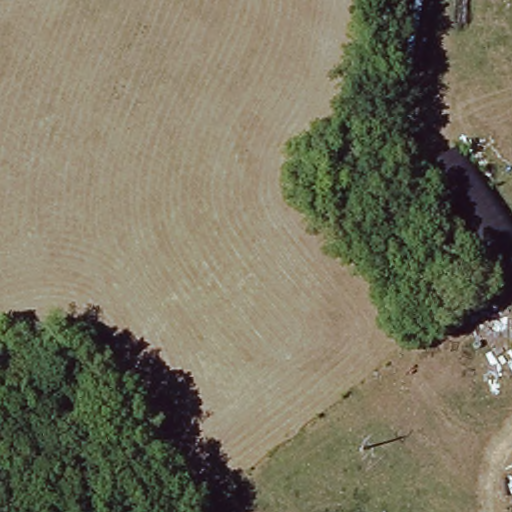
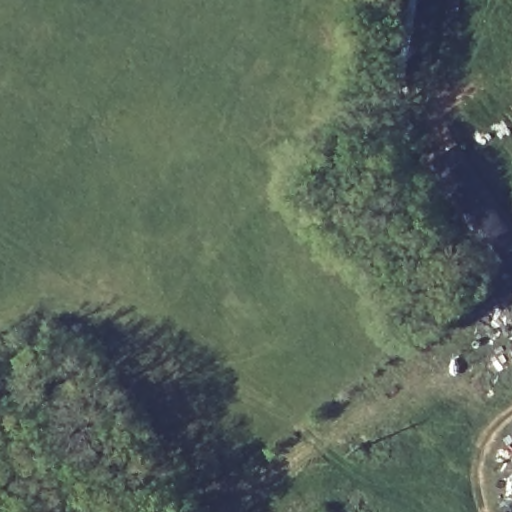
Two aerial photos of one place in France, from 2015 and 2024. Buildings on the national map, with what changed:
unchanged [(512,268),(504,273),(433,165),(465,145),(512,214),(512,268)]

